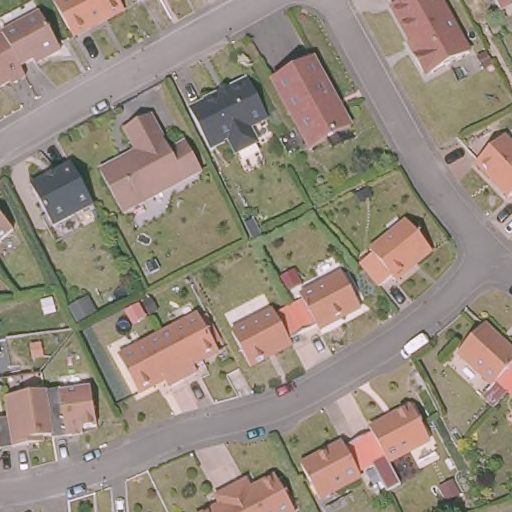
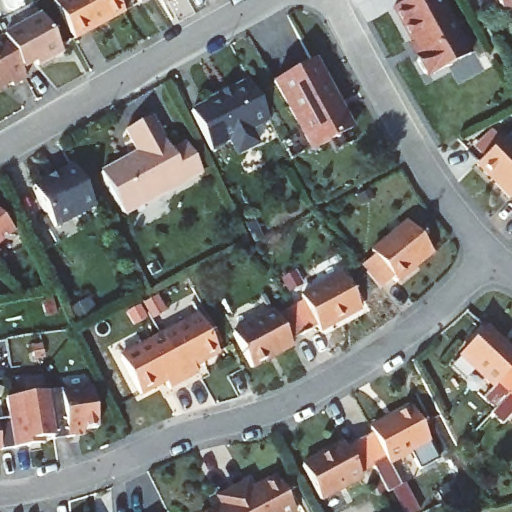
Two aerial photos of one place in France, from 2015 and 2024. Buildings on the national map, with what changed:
unchanged [(71,0),(121,0),(127,10),(78,41),(57,8),(71,0)]
unchanged [(144,0),(140,2),(139,0),(144,0)]
unchanged [(432,73),(432,72),(426,70),(420,57),(421,50),(397,0),(398,0),(448,0),(472,52),(432,73)]
unchanged [(512,0),(512,5),(508,7),(505,0),(512,0)]
unchanged [(3,36),(39,13),(60,47),(36,62),(34,57),(21,65),(3,36)]
unchanged [(28,75),(14,84),(12,81),(0,89),(0,38),(3,36),(21,65),(28,75)]
unchanged [(320,147),(282,74),(322,53),(360,127),(320,147)]
unchanged [(250,77),(270,120),(253,130),(260,144),(237,158),(230,144),(212,153),(190,110),(250,77)]
unchanged [(106,171),(127,160),(130,164),(145,156),(131,130),(133,129),(156,116),(175,151),(191,143),(206,172),(167,193),(128,213),(106,171)]
unchanged [(510,137),(512,140),(512,195),(481,164),(510,137)]
unchanged [(100,201),(59,224),(38,186),(65,172),(63,167),(76,159),(100,201)]
unchanged [(12,232),(0,242),(0,217),(12,232)]
unchanged [(400,280),(397,277),(385,287),(366,265),(367,265),(379,255),(376,251),(413,221),(436,250),(400,280)]
unchanged [(295,307),(308,300),(306,296),(348,273),(366,307),(325,330),(322,326),(309,333),(295,307)]
unchanged [(295,340),(297,344),(256,366),(237,333),(280,310),(281,314),(295,307),(309,333),(295,340)]
unchanged [(188,378),(165,335),(205,314),(224,351),(199,364),(203,372),(188,380),(188,378)]
unchanged [(501,409),(490,398),(500,386),(467,355),(493,327),(512,345),(512,398),(502,409),(501,409)]
unchanged [(175,387),(170,379),(145,393),(125,356),(165,335),(188,378),(188,380),(175,387)]
unchanged [(46,389),(61,387),(65,389),(92,384),(97,425),(83,427),(83,434),(52,441),(52,437),(46,389)]
unchanged [(11,419),(8,395),(46,389),(52,437),(29,441),(30,448),(15,450),(11,419)]
unchanged [(362,439),(376,431),(374,427),(415,405),(433,439),(392,461),(390,457),(376,464),(362,439)]
unchanged [(0,452),(0,421),(11,419),(15,450),(0,452)]
unchanged [(363,472),(365,476),(323,498),(305,464),(347,442),(349,446),(362,439),(376,464),(363,472)]
unchanged [(250,480),(255,488),(280,474),(299,510),(296,512),(249,512),(236,487),(250,480)]
unchanged [(225,503),(221,495),(236,487),(249,512),(209,512),(225,503)]

